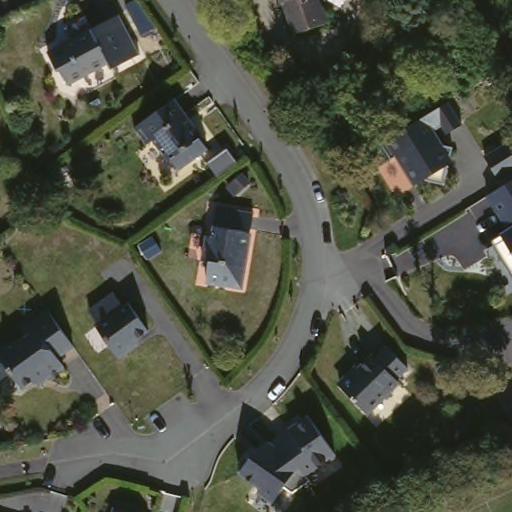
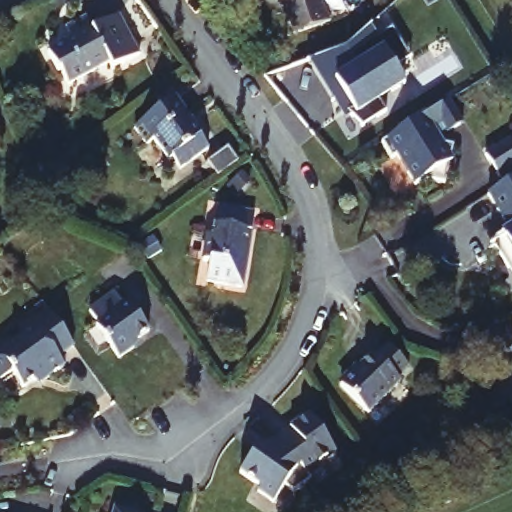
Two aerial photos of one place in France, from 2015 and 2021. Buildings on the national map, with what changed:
unchanged [(285,2),(283,2),(282,0),(291,0),(285,2)]
unchanged [(330,21),(296,35),(285,2),(291,0),(320,0),(330,21)]
unchanged [(72,37),(66,26),(86,16),(92,27),(119,13),(140,52),(112,67),(109,61),(69,82),(60,67),(59,68),(49,50),(72,37)]
new [(335,102),(310,60),(316,58),(347,47),(370,26),(377,38),(393,29),(400,40),(412,59),(396,69),(406,85),(401,87),(380,100),(387,113),(362,127),(352,116),(346,120),(335,102)]
unchanged [(460,142),(452,179),(432,175),(423,181),(404,152),(398,156),(388,140),(406,128),(426,115),(453,97),(468,119),(453,128),(447,119),(439,124),(449,140),(460,142)]
unchanged [(176,99),(204,138),(202,139),(210,149),(181,170),(175,160),(170,164),(155,142),(148,147),(135,128),(176,99)]
unchanged [(486,160),(506,147),(512,155),(512,162),(495,173),(486,160)]
unchanged [(510,221),(493,195),(500,191),(512,183),(512,221),(510,221)]
unchanged [(253,211),(239,285),(205,279),(209,259),(201,258),(205,233),(210,234),(216,204),(253,211)]
unchanged [(497,241),(512,231),(512,263),(497,241)]
unchanged [(116,289),(125,301),(130,298),(150,327),(132,339),(135,344),(120,354),(97,321),(100,319),(92,306),(116,289)]
unchanged [(75,342),(60,353),(65,361),(45,375),(37,373),(25,382),(13,366),(2,374),(0,372),(0,344),(13,335),(20,336),(37,324),(32,317),(49,306),(75,342)]
unchanged [(338,376),(346,369),(351,370),(370,352),(375,355),(385,345),(405,366),(394,377),(397,381),(365,412),(337,383),(338,376)]
unchanged [(252,447),(259,451),(271,436),(307,411),(335,449),(317,461),(320,465),(308,473),(310,476),(292,489),(285,483),(272,499),(258,487),(260,484),(238,466),(252,447)]
unchanged [(133,512),(108,512),(110,505),(133,512)]

